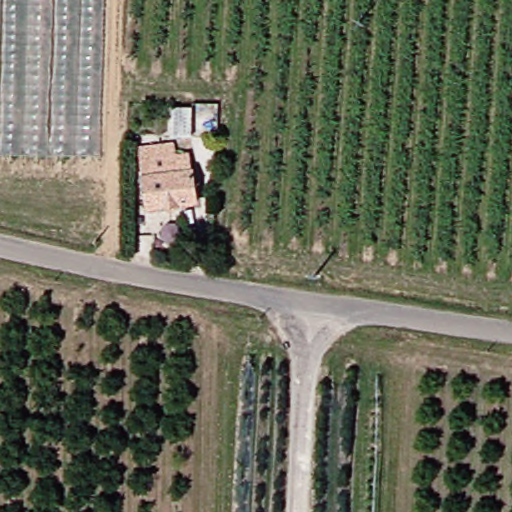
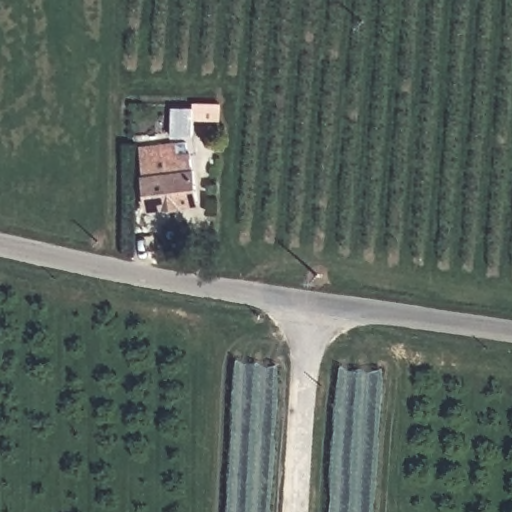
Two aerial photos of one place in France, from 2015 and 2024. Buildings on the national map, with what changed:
demolished [(99,160),(0,157),(0,0),(102,0),(99,160)]
unchanged [(207,150),(160,148),(162,121),(183,122),(183,117),(209,119),(207,150)]
unchanged [(166,156),(167,169),(180,168),(187,219),(137,223),(131,160),(166,156)]

